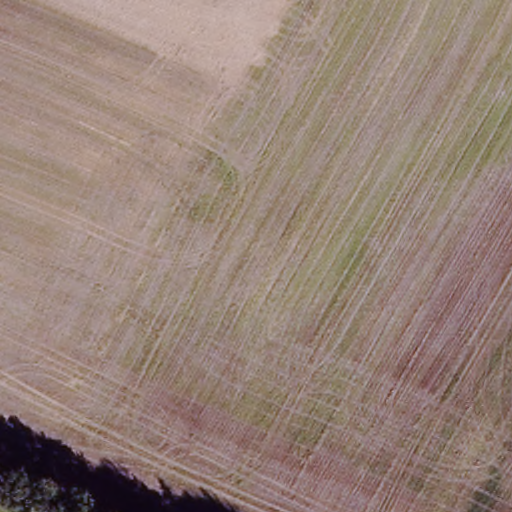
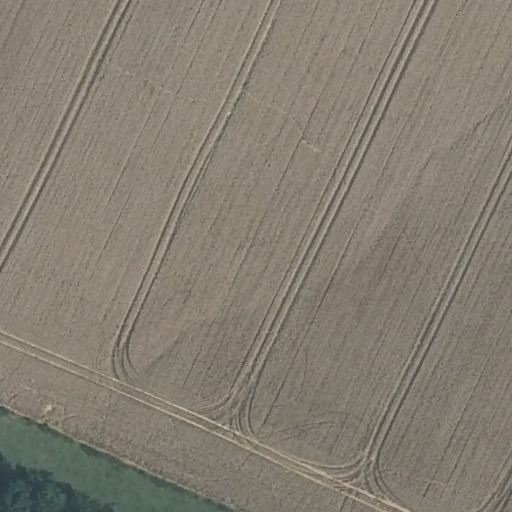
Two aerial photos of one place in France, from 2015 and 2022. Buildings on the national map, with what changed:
[]

